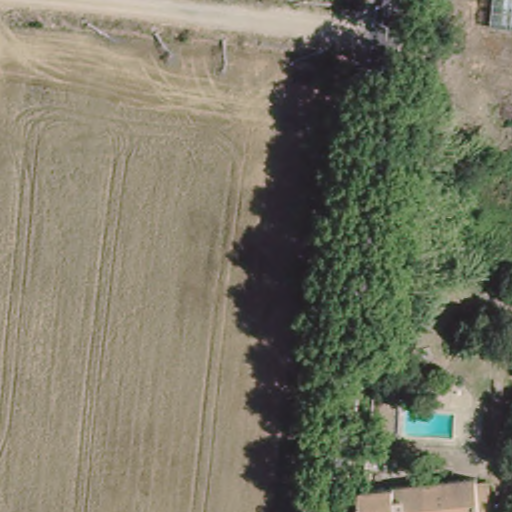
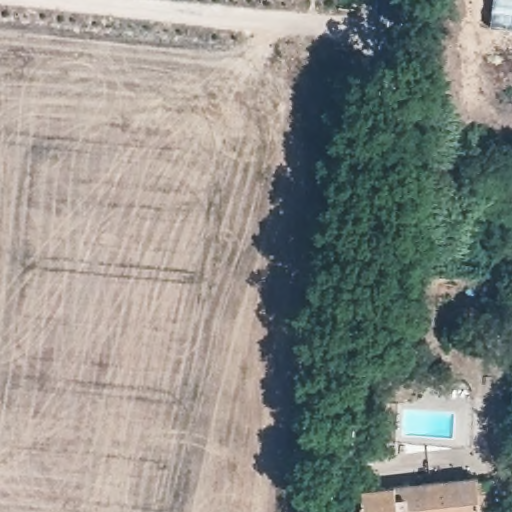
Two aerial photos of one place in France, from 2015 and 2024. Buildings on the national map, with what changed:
unchanged [(490,32),(493,0),(512,0),(512,34),(490,32)]
unchanged [(485,476),(489,510),(475,509),(475,512),(350,512),(355,486),(457,475),(485,476)]

